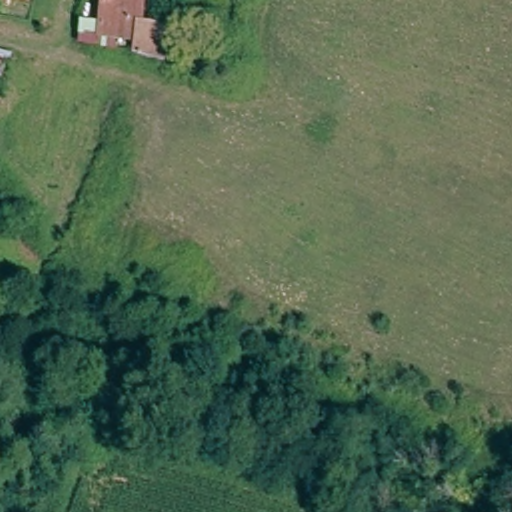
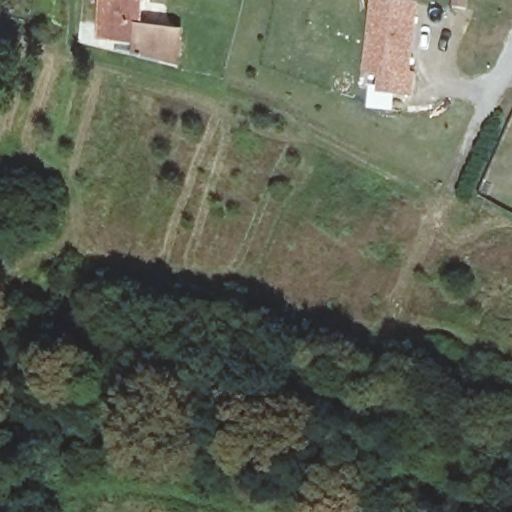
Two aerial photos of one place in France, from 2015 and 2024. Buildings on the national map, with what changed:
unchanged [(176,26),(174,66),(134,62),(136,40),(98,36),(101,0),(141,0),(140,24),(176,26)]
new [(412,71),(416,71),(413,96),(379,94),(380,73),(364,71),(371,0),(414,0),(419,1),(412,71)]
unchanged [(13,56),(0,99),(0,53),(13,56)]

